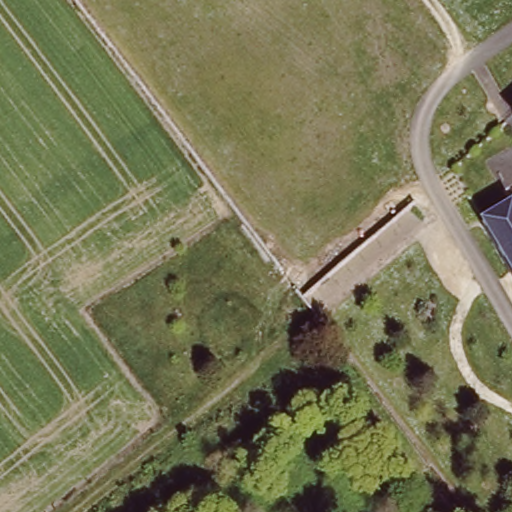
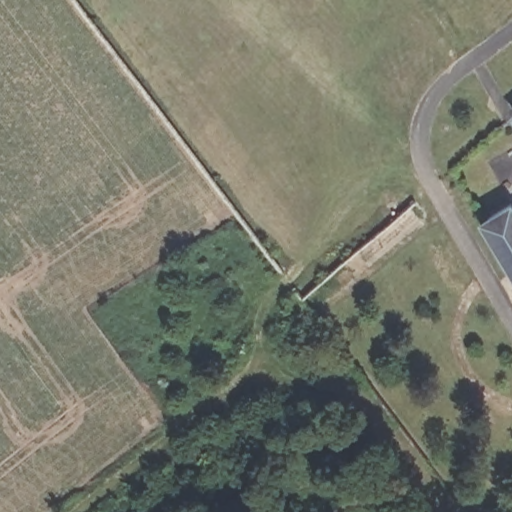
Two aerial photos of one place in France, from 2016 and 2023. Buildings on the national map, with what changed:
unchanged [(511,114),(512,113),(512,115),(511,114)]
unchanged [(510,199),(512,202),(512,276),(478,219),(510,199)]

